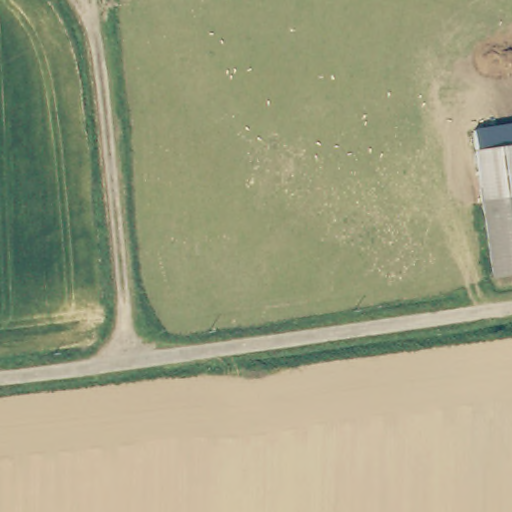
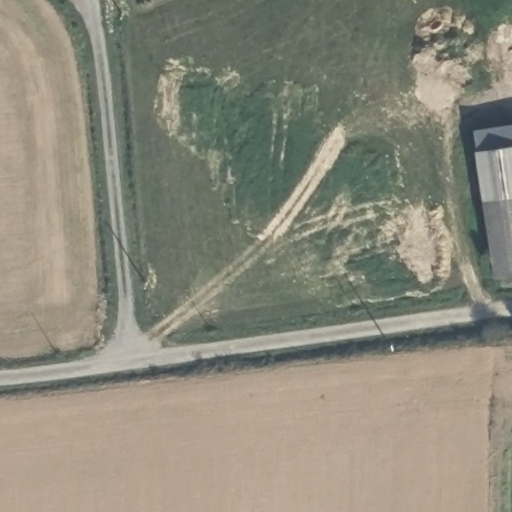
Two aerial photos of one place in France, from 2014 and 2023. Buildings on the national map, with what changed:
unchanged [(477,149),(512,144),(512,274),(495,277),(477,149)]

